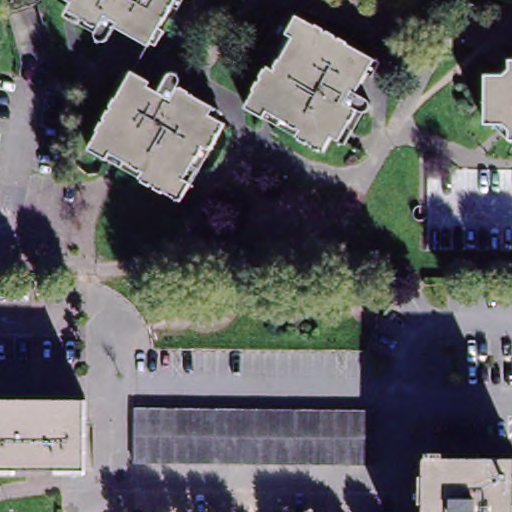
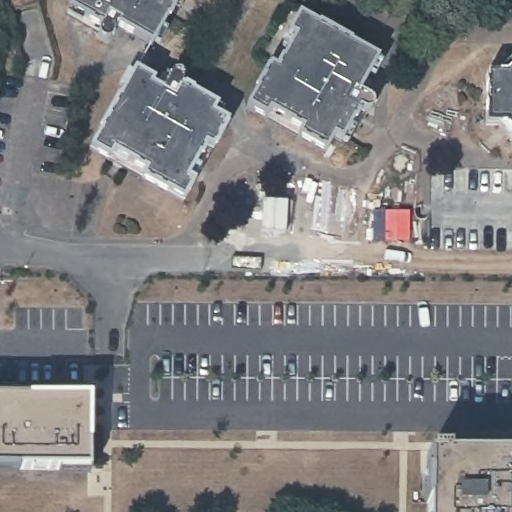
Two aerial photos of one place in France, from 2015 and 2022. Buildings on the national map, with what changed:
unchanged [(155,48),(121,29),(112,46),(111,46),(111,47),(110,48),(109,48),(109,49),(108,49),(107,49),(106,49),(105,49),(104,49),(103,49),(102,48),(101,48),(100,47),(99,46),(99,45),(99,44),(99,42),(99,39),(102,34),(89,27),(93,21),(74,11),(78,4),(71,0),(183,0),(155,48)]
unchanged [(277,53),(284,57),(294,39),(288,35),(299,16),(377,61),(358,95),(375,105),(376,105),(377,106),(377,107),(378,109),(379,110),(379,112),(379,113),(378,114),(378,115),(377,115),(377,116),(376,117),(374,117),(374,118),(372,118),(370,118),(368,117),(364,115),(356,128),(351,124),(340,143),(333,139),(324,153),(282,129),(286,123),(268,112),(264,119),(245,108),(277,53)]
unchanged [(183,70),(184,69),(185,68),(186,68),(187,68),(188,67),(189,68),(191,68),(192,69),(193,69),(193,70),(194,71),(194,72),(195,73),(195,74),(195,75),(195,76),(194,77),(194,78),(192,82),(204,90),(201,95),(219,106),(215,113),(230,122),(206,164),(199,160),(189,178),(196,182),(185,200),(130,169),(134,162),(115,152),(112,158),(93,148),(138,69),(172,88),(182,71),(183,70)]
unchanged [(488,76),(506,77),(512,71),(512,143),(512,142),(512,132),(506,126),(488,126),(488,76)]
unchanged [(87,465),(0,466),(0,396),(88,395),(87,465)]
demolished [(369,408),(369,460),(134,460),(134,408),(369,408)]
unchanged [(427,512),(428,459),(429,459),(429,452),(447,453),(447,459),(512,459),(512,512),(427,512)]

